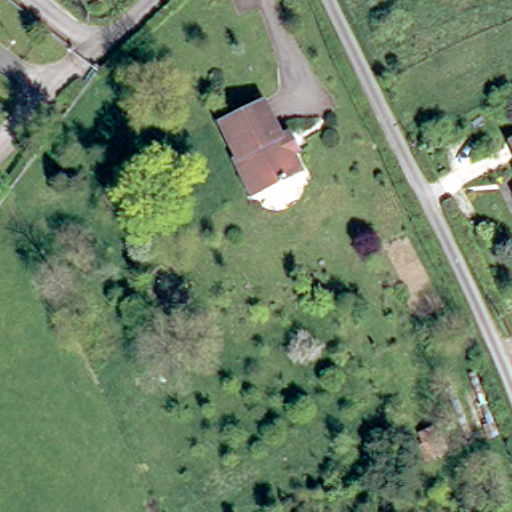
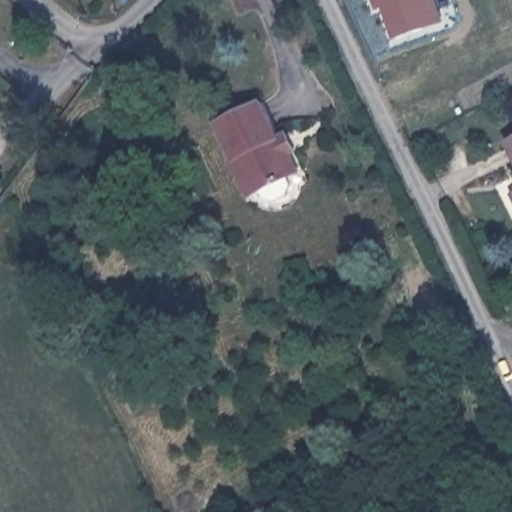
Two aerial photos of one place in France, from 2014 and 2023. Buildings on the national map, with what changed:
new [(395,39),(384,7),(375,11),(372,0),(438,0),(445,22),(395,39)]
unchanged [(285,182),(288,189),(284,199),(271,206),(261,202),(257,195),(246,201),(229,164),(232,163),(214,126),(259,106),(276,141),(281,139),(284,138),(292,156),(288,158),(296,177),(285,182)]
unchanged [(501,147),(512,140),(512,168),(501,147)]
unchanged [(512,184),(512,188),(511,185),(512,184)]
unchanged [(509,199),(512,197),(512,206),(509,199)]

